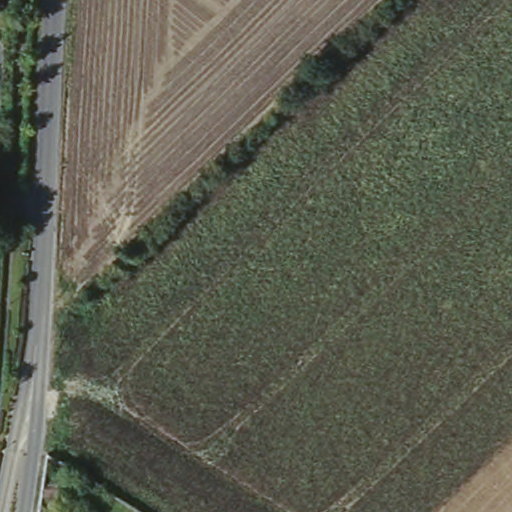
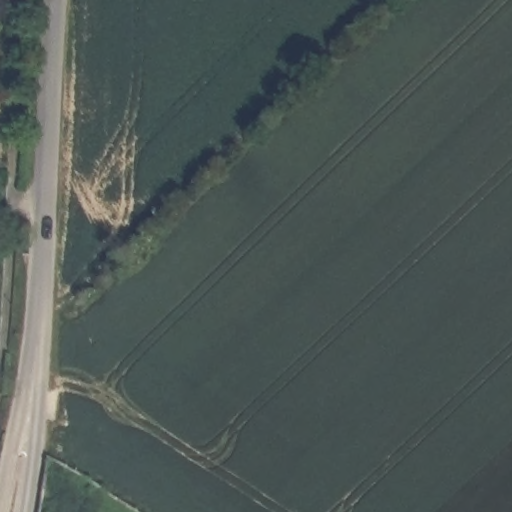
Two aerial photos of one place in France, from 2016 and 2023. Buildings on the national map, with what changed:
unchanged [(63,454),(55,512),(34,512),(37,492),(44,442),(63,454)]

